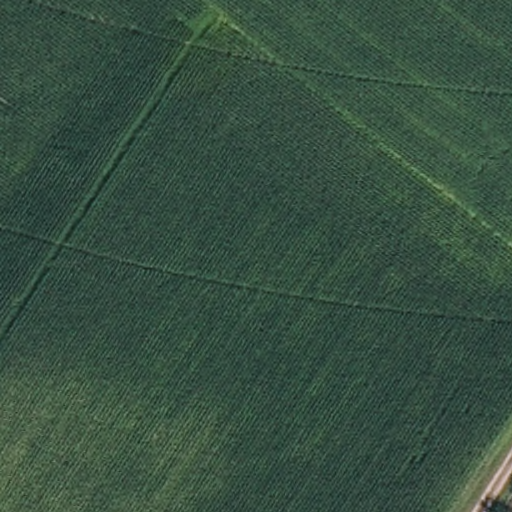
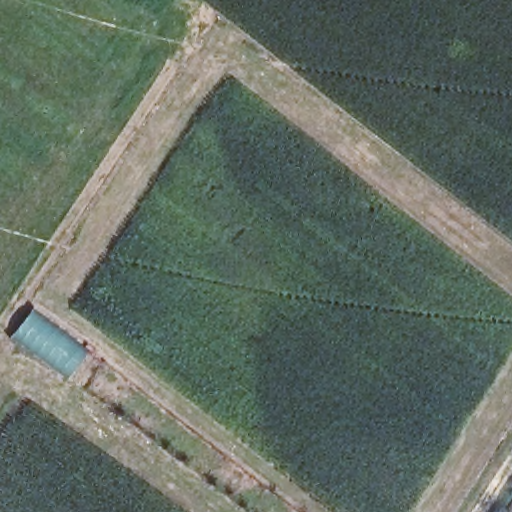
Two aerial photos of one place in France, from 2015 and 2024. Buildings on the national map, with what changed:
new [(90,352),(69,381),(11,337),(32,309),(90,352)]

